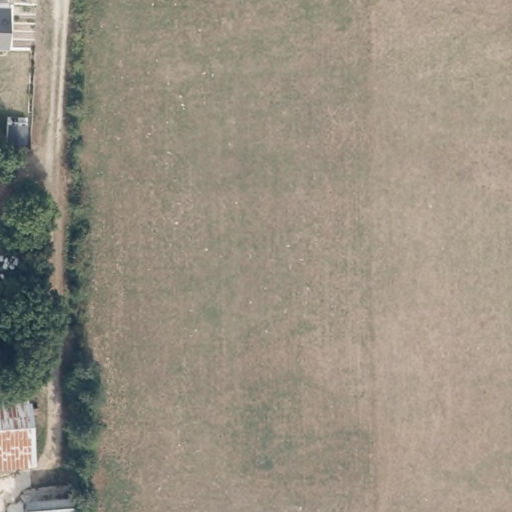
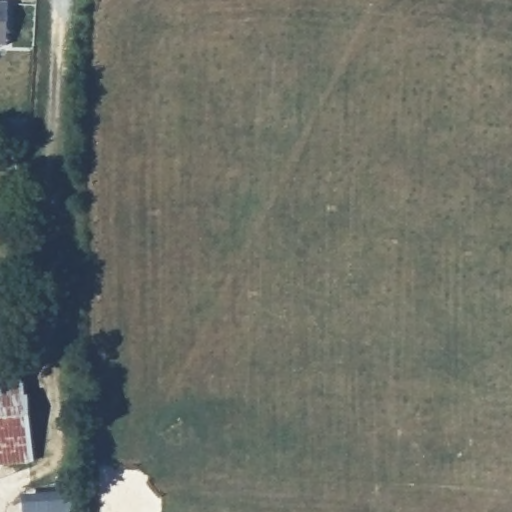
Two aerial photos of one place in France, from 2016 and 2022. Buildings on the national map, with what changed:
unchanged [(6,3),(4,46),(0,46),(0,2),(6,3)]
unchanged [(31,394),(36,462),(0,466),(0,399),(31,394)]
unchanged [(73,512),(23,512),(22,495),(71,492),(73,512)]

